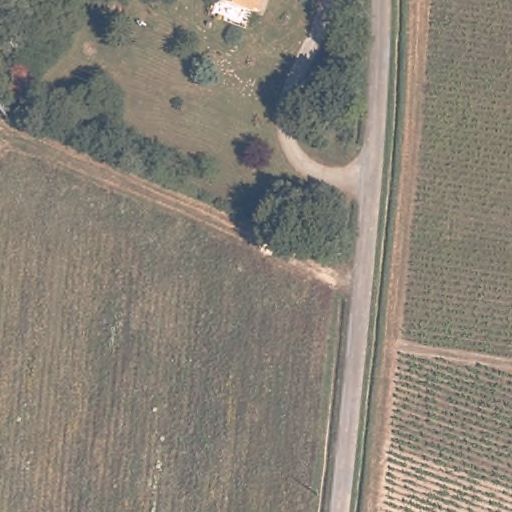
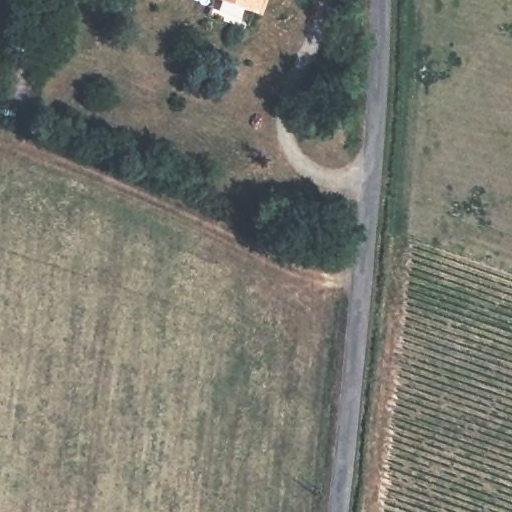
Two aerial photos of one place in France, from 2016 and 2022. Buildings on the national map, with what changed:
unchanged [(212,1),(212,0),(256,0),(250,16),(212,1)]

